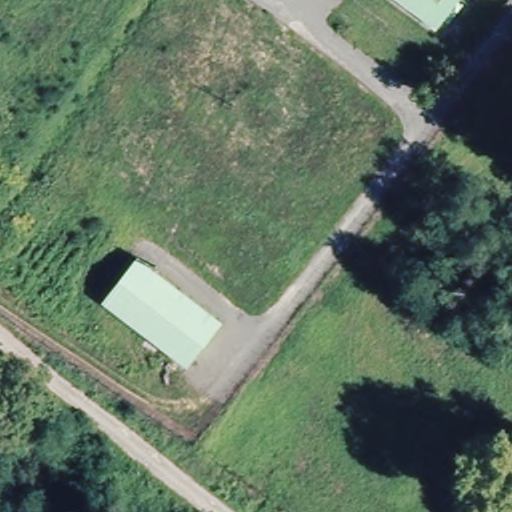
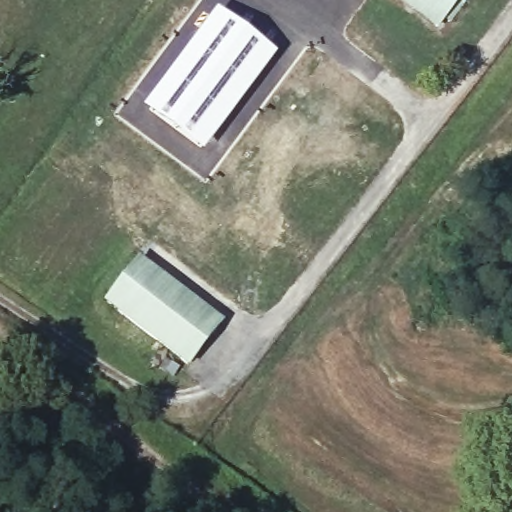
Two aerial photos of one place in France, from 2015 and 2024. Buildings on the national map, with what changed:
unchanged [(407,0),(451,0),(434,20),(407,0)]
new [(149,105),(155,95),(155,92),(185,50),(216,9),(276,54),(203,151),(170,129),(147,109),(149,105)]
unchanged [(220,319),(185,365),(100,302),(143,255),(220,319)]

